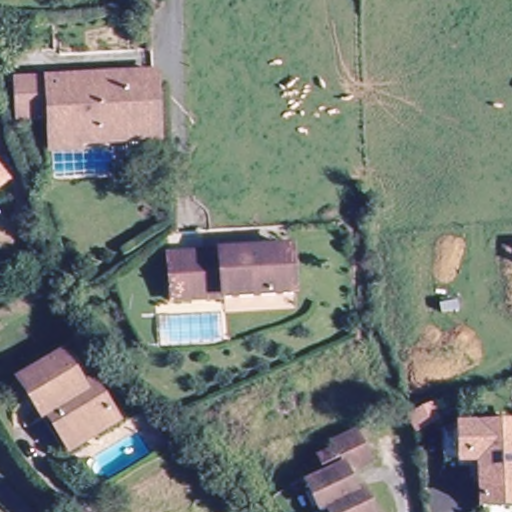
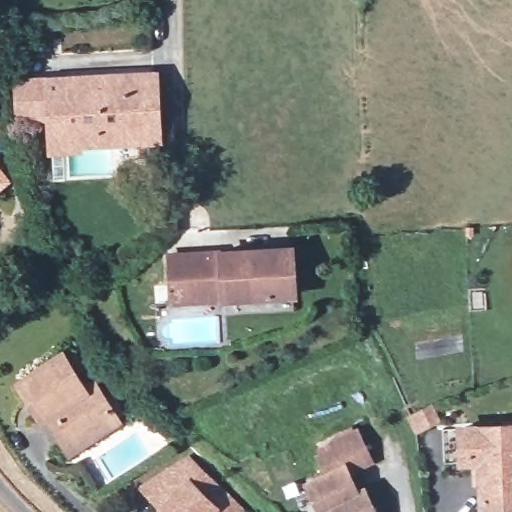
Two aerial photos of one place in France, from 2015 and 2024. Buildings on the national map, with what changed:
unchanged [(162,72),(162,144),(87,143),(84,149),(50,148),(50,121),(18,122),(19,80),(162,72)]
unchanged [(0,183),(0,175),(4,179),(0,183)]
unchanged [(178,254),(295,250),(297,296),(229,298),(180,300),(179,282),(178,254)]
unchanged [(22,380),(62,352),(85,386),(94,380),(112,406),(72,433),(43,389),(33,397),(22,380)]
unchanged [(69,451),(33,397),(43,389),(72,433),(112,406),(120,418),(69,451)]
unchanged [(432,409),(438,426),(419,432),(416,415),(432,409)]
unchanged [(329,509),(315,482),(336,471),(327,453),(342,445),(341,442),(364,430),(379,460),(355,472),(366,493),(372,489),(381,509),(383,512),(339,512),(336,506),(329,509)]
unchanged [(484,508),(484,465),(447,466),(446,432),(512,431),(512,508),(484,508)]
new [(238,508),(235,512),(157,512),(165,503),(157,497),(153,501),(138,487),(185,458),(238,508)]

